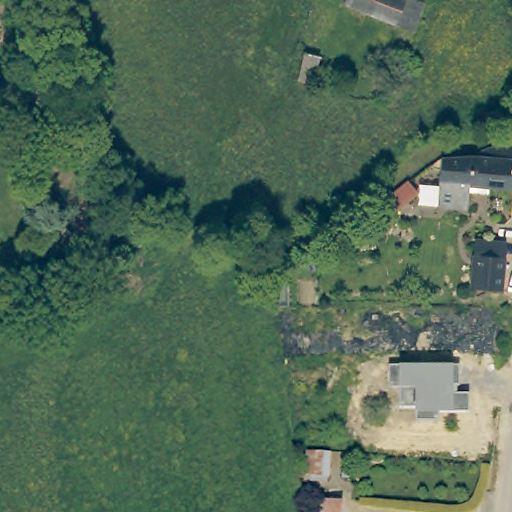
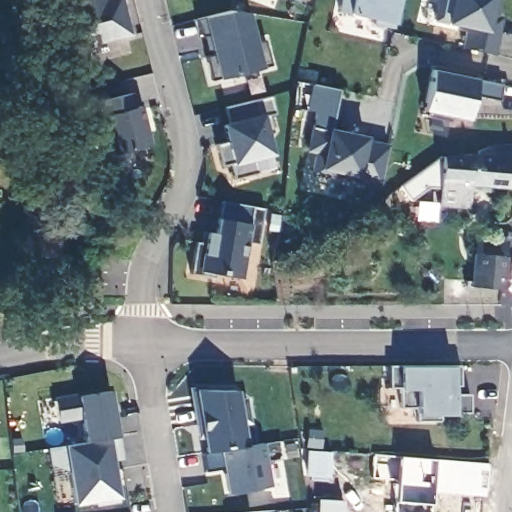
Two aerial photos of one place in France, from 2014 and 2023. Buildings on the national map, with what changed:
new [(131,35),(119,39),(121,50),(104,54),(102,44),(81,47),(69,0),(123,0),(131,35)]
new [(299,1),(296,0),(299,0),(299,1)]
new [(395,25),(351,15),(337,12),(340,0),(400,0),(395,25)]
demolished [(411,21),(364,0),(422,0),(411,21)]
unchanged [(499,16),(503,17),(495,55),(465,50),(471,30),(445,24),(435,21),(440,0),(502,0),(499,16)]
new [(234,9),(250,12),(255,42),(265,41),(272,65),(260,69),(216,79),(202,17),(234,9)]
demolished [(286,62),(301,36),(316,45),(303,70),(286,62)]
new [(471,95),(468,120),(423,111),(431,70),(476,80),(505,85),(500,101),(471,95)]
new [(339,89),(330,129),(365,137),(386,145),(376,188),(309,175),(313,155),(305,152),(313,114),(305,112),(311,85),(339,89)]
new [(130,94),(134,109),(141,107),(150,145),(109,155),(96,101),(130,94)]
new [(271,96),(275,114),(268,115),(273,134),(268,135),(273,156),(253,161),(256,174),(234,177),(230,163),(221,165),(216,145),(225,143),(221,124),(225,123),(224,108),(271,96)]
unchanged [(447,159),(488,157),(488,148),(512,149),(512,191),(472,185),(470,201),(440,199),(447,159)]
new [(263,210),(258,244),(247,242),(240,278),(212,274),(212,278),(190,275),(198,229),(216,232),(218,219),(222,201),(263,210)]
unchanged [(470,283),(472,247),(473,233),(504,236),(502,251),(498,286),(470,283)]
unchanged [(415,421),(414,413),(413,408),(398,408),(397,389),(390,388),(388,367),(400,367),(453,368),(458,368),(458,386),(452,387),(452,395),(467,395),(467,413),(452,415),(436,415),(436,421),(415,421)]
new [(237,390),(239,401),(246,400),(250,424),(244,426),(246,445),(262,442),(270,486),(228,493),(224,469),(207,471),(204,455),(195,391),(237,390)]
new [(111,391),(119,436),(108,438),(116,498),(74,505),(67,471),(50,462),(47,447),(63,445),(85,442),(80,418),(59,421),(55,400),(79,396),(111,391)]
new [(308,451),(330,453),(327,476),(306,475),(308,451)]
unchanged [(347,501),(347,512),(322,512),(322,501),(347,501)]
new [(274,512),(250,512),(273,510),(274,512)]

